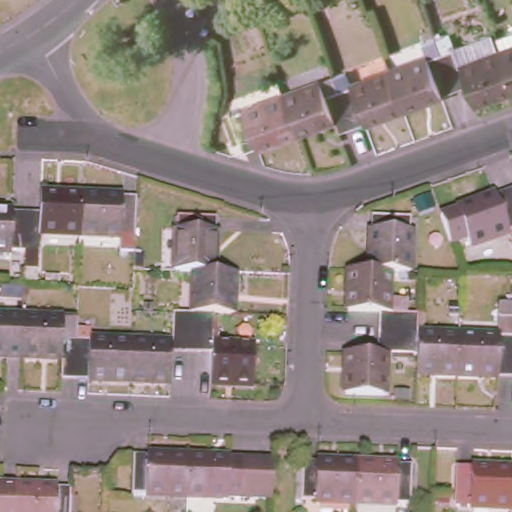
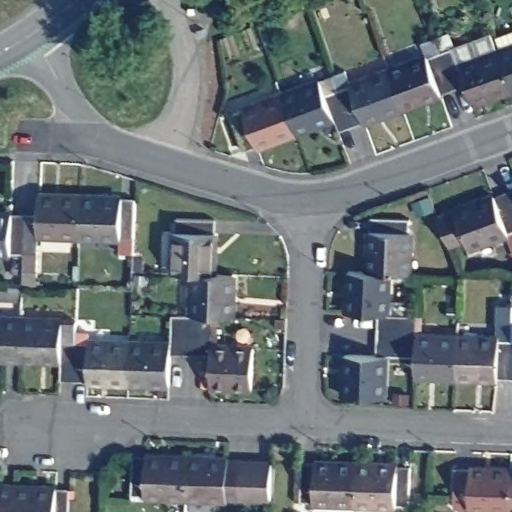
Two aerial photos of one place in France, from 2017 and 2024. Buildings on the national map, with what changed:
unchanged [(498,37),(500,45),(512,78),(512,97),(467,114),(461,95),(447,56),(498,37)]
unchanged [(500,45),(512,40),(512,78),(500,45)]
unchanged [(408,114),(395,75),(434,61),(429,46),(442,42),(447,56),(461,95),(408,114)]
unchanged [(352,76),(357,89),(395,75),(408,114),(357,133),(338,81),(352,76)]
unchanged [(338,81),(357,133),(343,138),(338,124),(299,138),(285,100),(338,81)]
unchanged [(234,118),(285,100),(299,138),(247,156),(234,118)]
unchanged [(499,180),(512,176),(512,216),(502,189),(499,180)]
unchanged [(463,247),(460,238),(444,244),(434,215),(502,189),(512,216),(512,258),(503,232),(463,247)]
unchanged [(34,250),(20,249),(21,210),(36,210),(37,190),(79,192),(77,231),(35,229),(34,250)]
unchanged [(132,195),(131,234),(77,231),(79,192),(132,195)]
unchanged [(0,248),(0,209),(21,210),(20,249),(0,248)]
unchanged [(176,269),(179,214),(217,215),(215,271),(195,270),(176,269)]
unchanged [(410,217),(408,272),(388,271),(367,270),(371,215),(410,217)]
unchanged [(416,313),(415,328),(376,327),(377,312),(346,310),(348,269),(367,270),(388,271),(386,312),(416,313)]
unchanged [(235,272),(233,315),(216,314),(201,313),(199,352),(187,351),(188,312),(193,313),(195,270),(215,271),(235,272)]
unchanged [(172,351),(171,381),(129,379),(131,339),(172,341),(173,312),(188,312),(187,351),(172,351)]
unchanged [(215,343),(254,347),(252,386),(212,384),(212,353),(199,352),(201,313),(216,314),(215,343)]
unchanged [(22,314),(20,354),(0,353),(0,314),(22,314)]
unchanged [(77,317),(76,337),(74,377),(59,377),(60,355),(20,354),(22,314),(77,317)]
unchanged [(413,374),(414,355),(415,341),(375,339),(376,327),(415,328),(416,334),(457,335),(455,376),(413,374)]
unchanged [(455,376),(457,335),(512,338),(510,378),(455,376)]
unchanged [(129,379),(74,377),(76,337),(131,339),(129,379)]
unchanged [(512,338),(512,379),(510,378),(512,338)]
unchanged [(414,355),(383,354),(381,395),(342,393),(344,351),(375,353),(375,339),(415,341),(414,355)]
unchanged [(142,493),(143,455),(196,456),(196,494),(142,493)]
unchanged [(281,459),(281,497),(196,494),(196,456),(281,459)]
unchanged [(312,456),(365,458),(364,496),(311,494),(312,456)]
unchanged [(422,460),(420,498),(364,496),(365,458),(422,460)]
unchanged [(469,466),(512,468),(512,506),(467,504),(469,466)]
unchanged [(5,484),(4,512),(0,512),(0,484),(5,484)]
unchanged [(4,512),(5,484),(58,486),(57,512),(4,512)]

